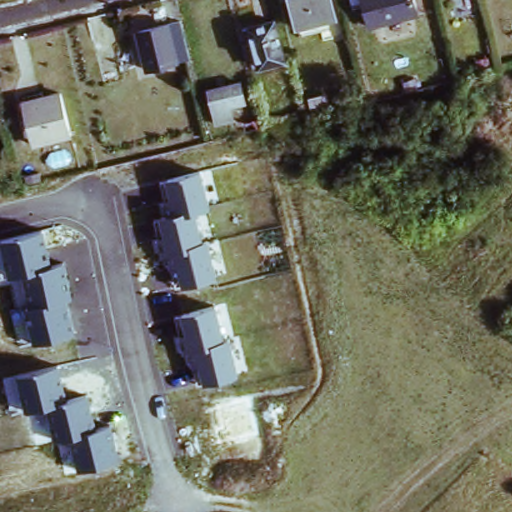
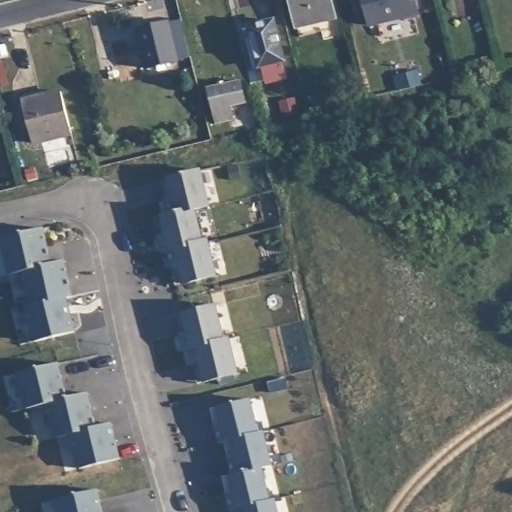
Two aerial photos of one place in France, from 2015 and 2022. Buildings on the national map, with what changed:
unchanged [(297,28),(291,0),(331,0),(335,18),(297,28)]
unchanged [(410,0),(413,15),(383,23),(367,27),(360,0),(410,0)]
unchanged [(184,19),(193,58),(160,66),(151,27),(184,19)]
unchanged [(247,40),(245,30),(275,22),(285,62),(260,67),(251,39),(247,40)]
unchanged [(233,84),(238,100),(226,105),(228,115),(213,119),(207,90),(233,84)]
unchanged [(62,95),(73,135),(33,145),(23,105),(62,95)]
unchanged [(201,171),(211,209),(195,212),(203,242),(210,240),(220,280),(179,290),(170,258),(165,259),(155,220),(169,216),(160,183),(201,171)]
unchanged [(20,273),(10,277),(2,240),(43,230),(52,266),(65,263),(72,298),(67,300),(74,335),(34,343),(20,273)]
unchanged [(217,307),(225,339),(230,338),(240,376),(200,386),(191,356),(187,357),(178,318),(217,307)]
unchanged [(73,437),(55,440),(47,406),(26,411),(18,375),(60,366),(68,400),(89,395),(95,429),(112,425),(119,461),(78,470),(73,437)]
new [(250,400),(260,433),(264,432),(273,467),(263,470),(272,501),(277,500),(280,512),(230,512),(222,480),(233,476),(225,445),(220,446),(210,411),(250,400)]
new [(98,491),(105,512),(58,512),(56,502),(98,491)]

